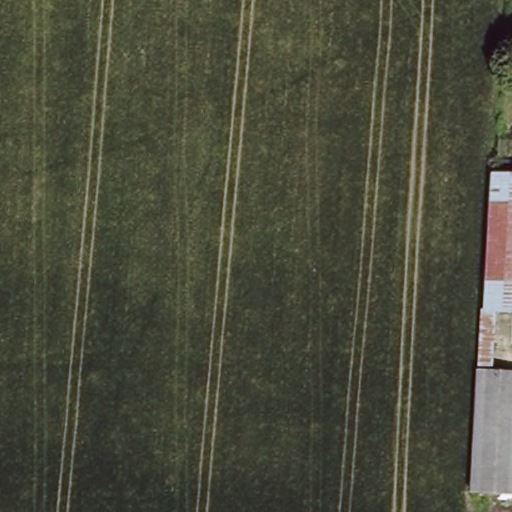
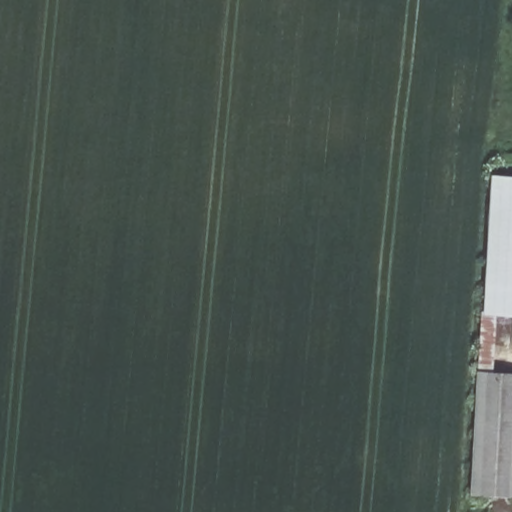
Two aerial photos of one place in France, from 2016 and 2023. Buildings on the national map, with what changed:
unchanged [(512,175),(512,307),(485,306),(491,174),(512,175)]
unchanged [(512,490),(476,489),(481,370),(512,371),(512,490)]

